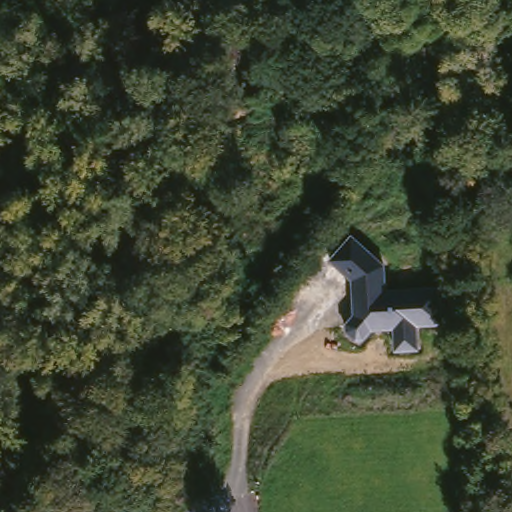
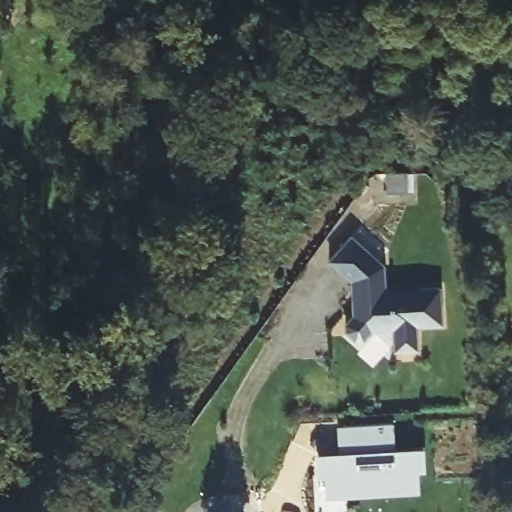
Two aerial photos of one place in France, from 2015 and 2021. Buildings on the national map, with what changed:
unchanged [(0,1),(0,0),(2,0),(0,1)]
unchanged [(438,326),(416,328),(418,350),(393,352),(392,330),(371,331),(363,341),(354,342),(345,333),(345,323),(353,314),(349,279),(327,259),(349,235),(383,266),(384,289),(434,287),(438,326)]
new [(338,443),(337,426),(389,423),(391,452),(421,451),(422,469),(414,470),(415,490),(327,496),(325,475),(318,476),(317,456),(339,455),(338,443)]

